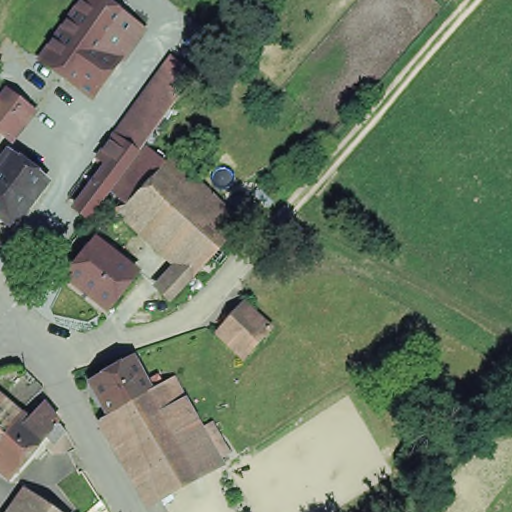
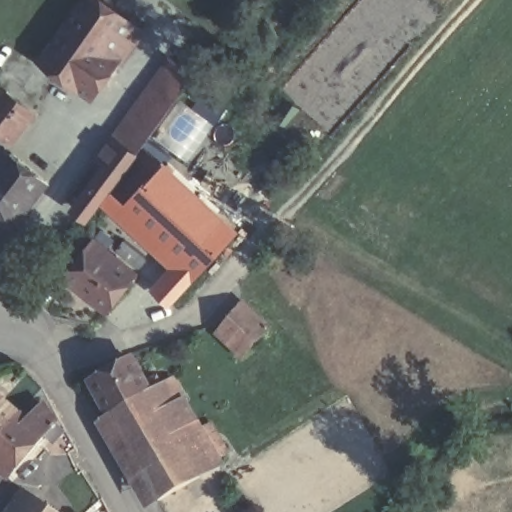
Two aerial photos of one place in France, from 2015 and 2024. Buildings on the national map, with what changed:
unchanged [(94,103),(38,61),(81,0),(105,0),(147,30),(94,103)]
unchanged [(186,91),(93,221),(74,206),(105,161),(98,156),(163,71),(186,91)]
unchanged [(25,114),(20,111),(1,136),(0,134),(0,90),(3,86),(30,108),(25,114)]
unchanged [(47,181),(11,228),(0,219),(0,166),(10,153),(47,181)]
unchanged [(244,218),(169,305),(153,285),(169,264),(118,213),(174,156),(244,218)]
unchanged [(144,269),(114,306),(72,272),(101,235),(144,269)]
unchanged [(279,326),(256,353),(219,325),(244,295),(279,326)]
unchanged [(88,381),(105,371),(128,359),(143,384),(155,376),(161,385),(106,415),(88,381)]
unchanged [(183,403),(218,465),(156,501),(106,415),(161,385),(169,381),(183,403)]
unchanged [(14,419),(0,435),(0,407),(14,419)]
unchanged [(14,419),(23,425),(39,409),(59,435),(53,441),(48,436),(5,482),(0,477),(0,435),(14,419)]
unchanged [(26,489),(61,512),(10,512),(26,489)]

